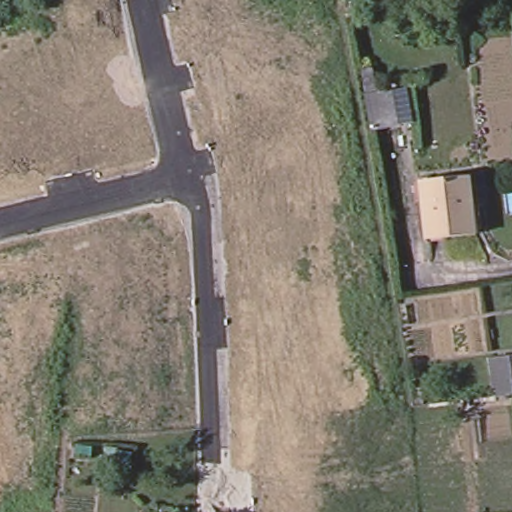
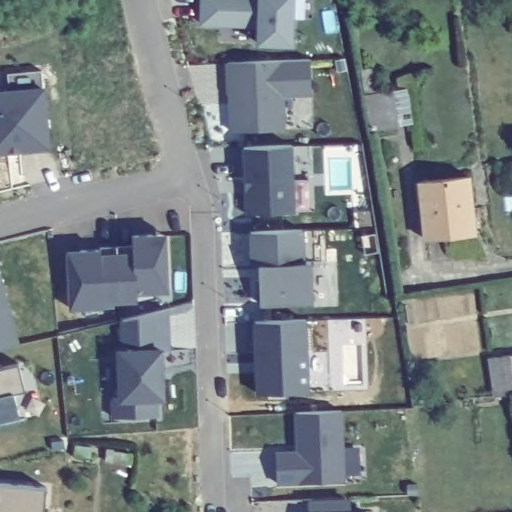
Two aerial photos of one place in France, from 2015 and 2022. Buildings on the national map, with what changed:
new [(257,45),(257,25),(200,24),(200,0),(296,0),(294,46),(257,45)]
new [(285,129),(230,130),(228,94),(226,93),(225,61),(310,58),(310,96),(285,96),(285,129)]
new [(17,94),(15,76),(49,73),(56,150),(0,156),(0,96),(17,94)]
unchanged [(387,88),(394,123),(367,128),(360,93),(387,88)]
new [(245,211),(243,147),(293,145),(296,210),(245,211)]
unchanged [(470,179),(477,236),(427,242),(421,184),(470,179)]
new [(304,230),(305,262),(312,262),(313,306),(260,308),(259,264),(249,265),(249,232),(304,230)]
new [(167,233),(168,292),(137,292),(138,299),(102,299),(102,308),(69,307),(67,249),(101,249),(100,244),(133,240),(132,234),(167,233)]
unchanged [(7,275),(15,308),(17,308),(26,348),(0,354),(0,277),(7,275)]
new [(170,358),(163,353),(165,400),(157,400),(158,415),(112,417),(110,397),(120,396),(117,348),(123,348),(120,319),(168,309),(170,358)]
new [(257,393),(252,320),(308,318),(310,361),(310,392),(257,393)]
unchanged [(506,361),(512,360),(512,399),(490,402),(485,363),(506,361)]
new [(3,369),(3,372),(27,366),(33,393),(22,396),(27,418),(0,424),(0,370),(3,369)]
new [(345,482),(277,484),(275,449),(296,450),(295,412),(342,411),(345,482)]
new [(4,487),(8,487),(54,491),(52,512),(2,512),(4,487)]
new [(353,512),(309,512),(308,501),(352,499),(353,512)]

